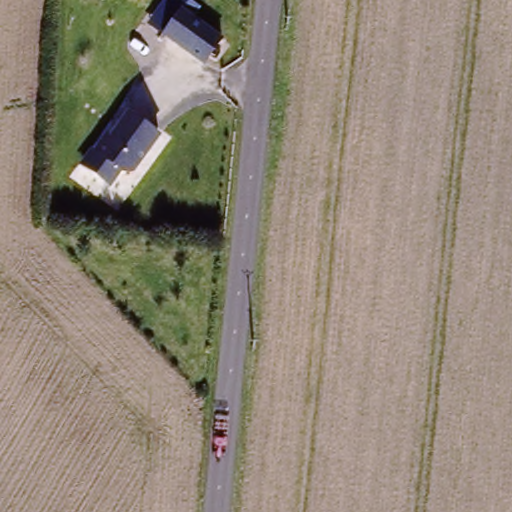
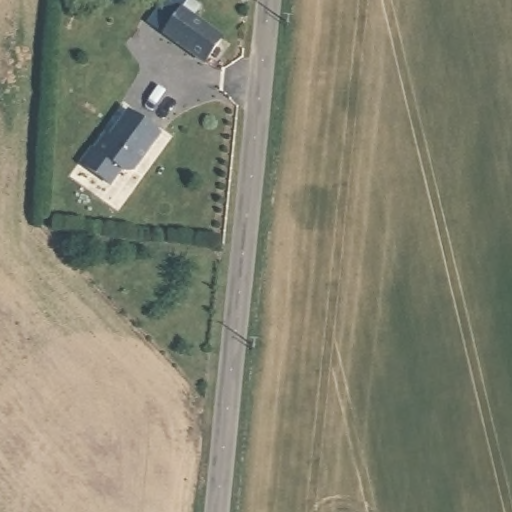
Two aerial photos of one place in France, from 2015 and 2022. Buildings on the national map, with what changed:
unchanged [(222,39),(204,65),(162,40),(179,10),(222,39)]
unchanged [(159,138),(129,179),(119,175),(107,189),(74,165),(124,108),(159,138)]

